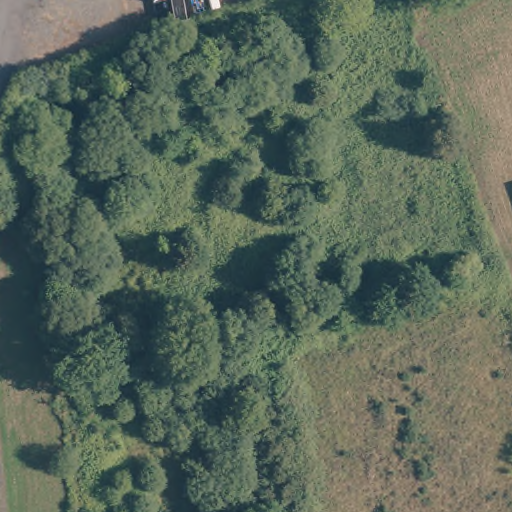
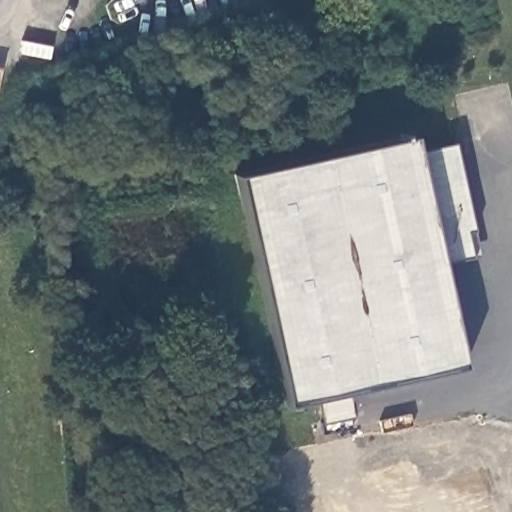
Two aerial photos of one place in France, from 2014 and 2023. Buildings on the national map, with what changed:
new [(413,136),(416,152),(453,143),(471,230),(477,254),(470,256),(440,260),(463,367),(342,393),(350,416),(320,422),(313,399),(285,405),(234,175),(413,136)]

